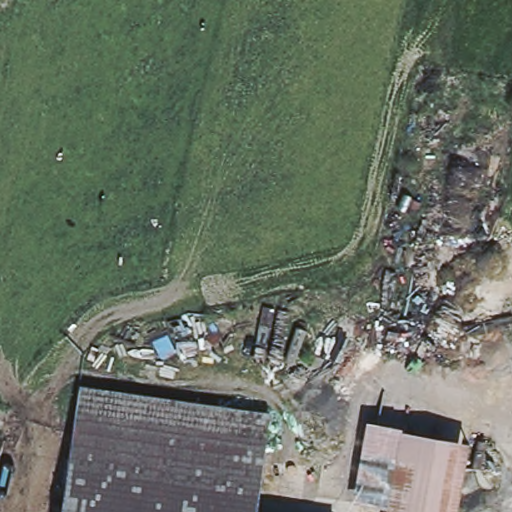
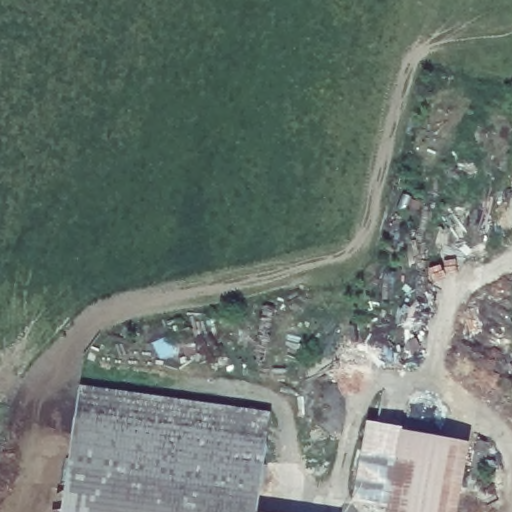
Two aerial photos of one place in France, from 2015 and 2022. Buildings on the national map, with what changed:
unchanged [(77,394),(270,420),(267,444),(73,418),(77,394)]
unchanged [(73,418),(267,444),(256,512),(61,512),(73,418)]
unchanged [(373,428),(399,433),(386,506),(360,503),(373,428)]
unchanged [(386,506),(399,433),(463,444),(450,512),(385,512),(386,506)]

